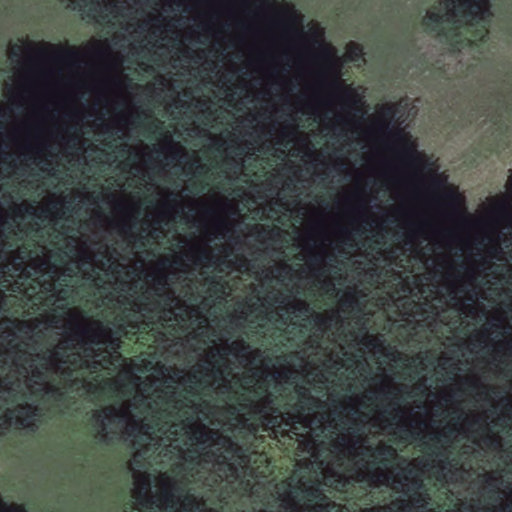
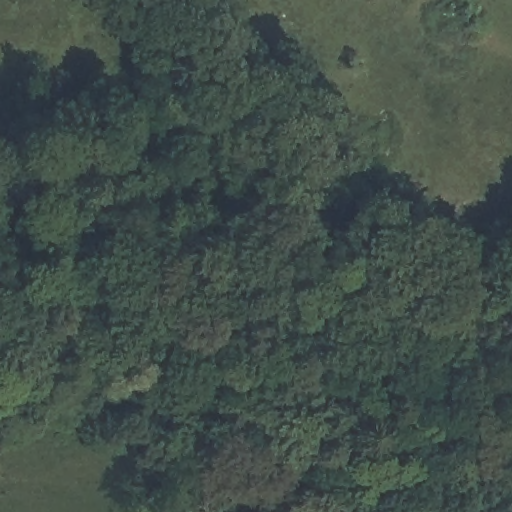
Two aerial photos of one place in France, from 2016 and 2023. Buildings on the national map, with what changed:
unchanged [(465,5),(435,33),(421,20),(441,0),(460,0),(465,5)]

